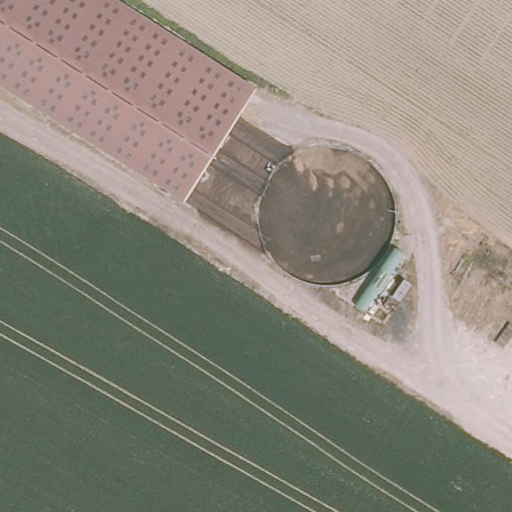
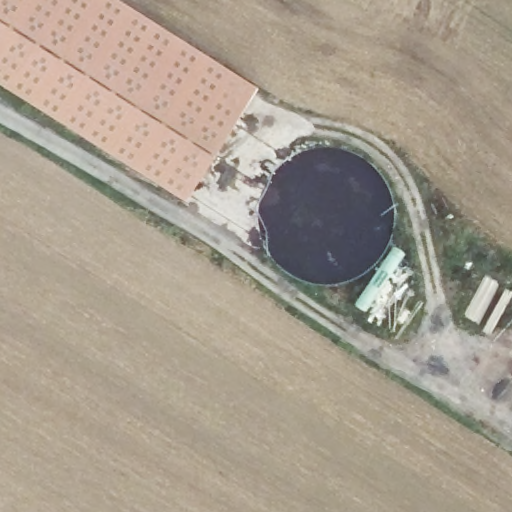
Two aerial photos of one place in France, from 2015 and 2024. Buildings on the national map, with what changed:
unchanged [(181,204),(0,90),(0,0),(109,0),(254,91),(181,204)]

